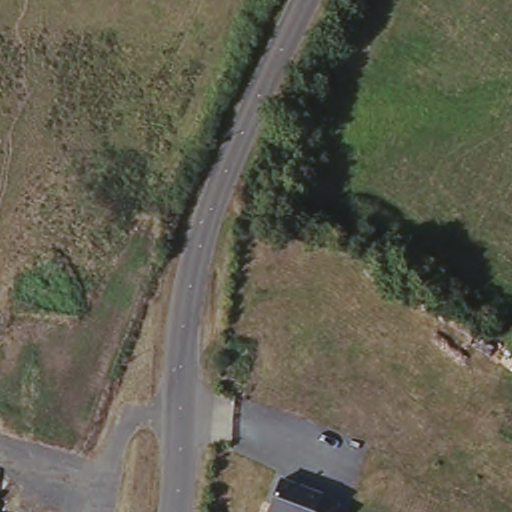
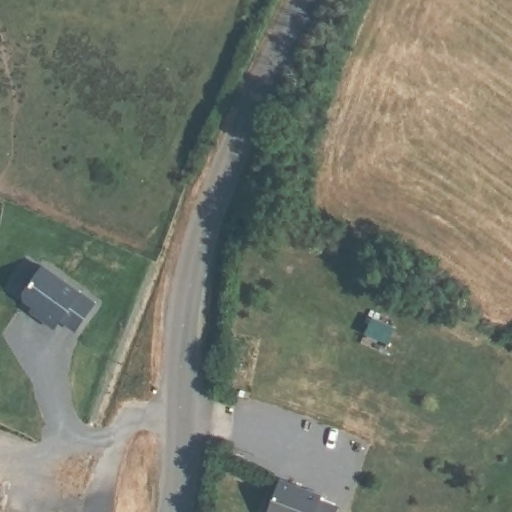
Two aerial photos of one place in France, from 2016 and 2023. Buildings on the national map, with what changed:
new [(63,322),(55,331),(29,313),(33,307),(25,301),(23,291),(44,264),(99,303),(77,334),(63,322)]
unchanged [(342,501),(338,512),(267,512),(281,478),(342,501)]

